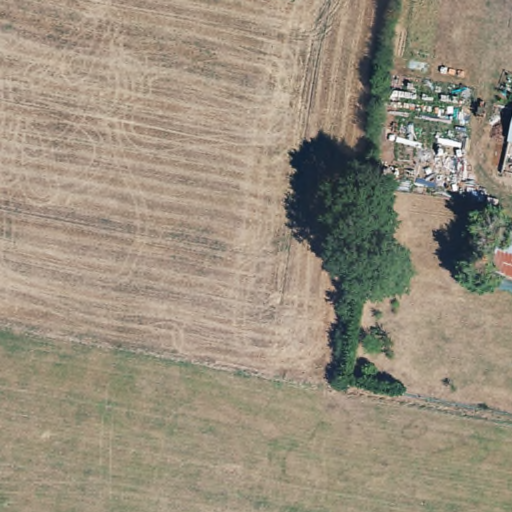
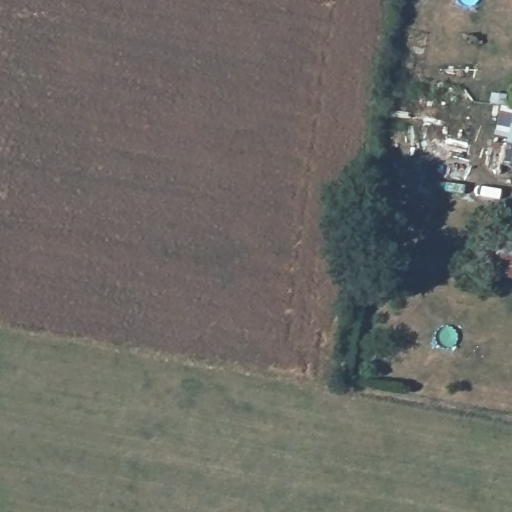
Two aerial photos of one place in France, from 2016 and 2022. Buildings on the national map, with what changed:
unchanged [(512,279),(495,273),(506,234),(512,236),(512,279)]

